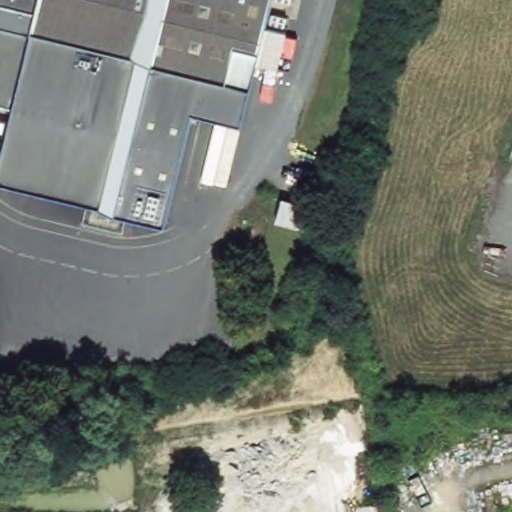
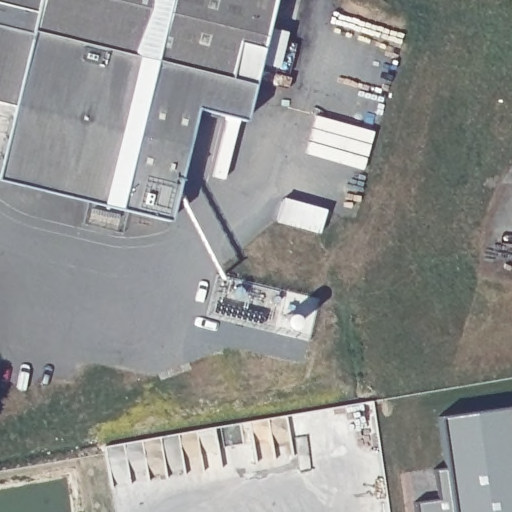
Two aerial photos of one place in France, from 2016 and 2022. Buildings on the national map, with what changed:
unchanged [(284,30),(275,66),(256,62),(253,75),(251,80),(242,116),(194,104),(174,182),(165,217),(0,175),(0,151),(2,141),(13,101),(0,98),(0,0),(272,0),(266,25),(284,30)]
new [(285,199),(327,209),(320,235),(279,225),(285,199)]
new [(417,502),(441,499),(436,470),(449,468),(441,417),(512,407),(512,512),(418,512),(417,502)]

